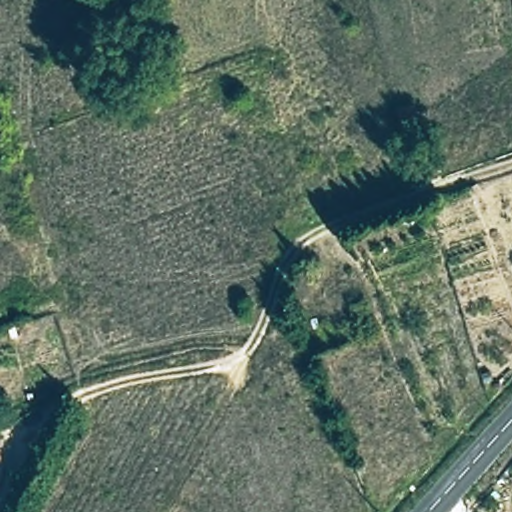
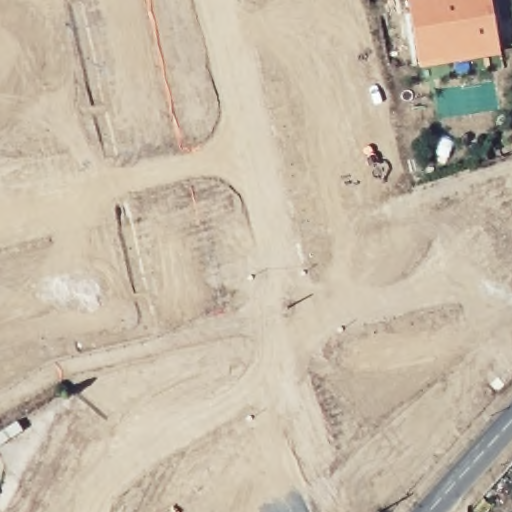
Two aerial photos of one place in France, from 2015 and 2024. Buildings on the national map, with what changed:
new [(499,49),(419,63),(409,0),(491,0),(499,49)]
new [(481,375),(491,372),(494,381),(484,384),(481,375)]

